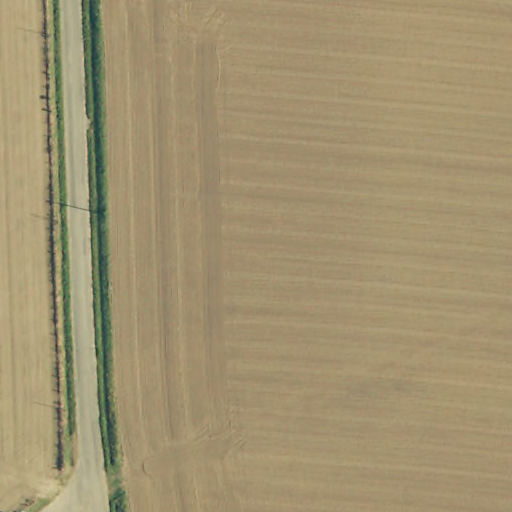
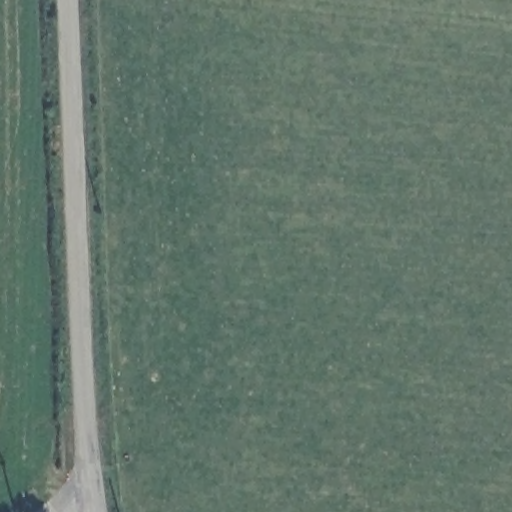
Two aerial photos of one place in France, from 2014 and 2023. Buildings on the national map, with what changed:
[]

